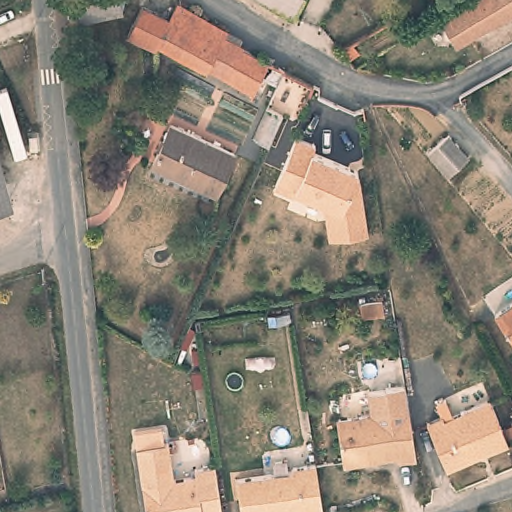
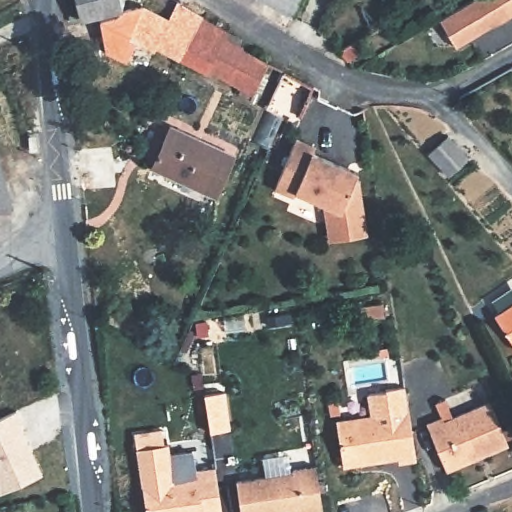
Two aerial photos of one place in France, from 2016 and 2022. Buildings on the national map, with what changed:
unchanged [(125,6),(84,18),(79,0),(123,0),(125,6)]
unchanged [(291,18),(271,5),(273,0),(302,0),(291,18)]
unchanged [(465,0),(512,0),(512,12),(492,23),(491,22),(453,44),(437,16),(465,0)]
unchanged [(171,16),(179,1),(228,29),(225,35),(249,49),(256,52),(268,59),(272,61),(255,93),(209,69),(207,71),(157,45),(171,16)]
unchanged [(171,16),(157,45),(156,48),(130,35),(146,3),(171,16)]
unchanged [(286,68),(315,83),(301,112),(272,100),(286,68)]
unchanged [(173,122),(234,154),(212,194),(152,162),(173,122)]
unchanged [(0,127),(0,124),(1,127),(0,127)]
unchanged [(449,132),(470,155),(450,173),(428,150),(449,132)]
unchanged [(323,207),(296,195),(293,200),(275,192),(296,141),(315,149),(312,156),(336,166),(357,176),(355,182),(358,184),(367,238),(340,242),(329,244),(323,207)]
unchanged [(0,209),(0,157),(14,206),(0,209)]
unchanged [(11,171),(17,182),(12,185),(11,171)]
unchanged [(493,311),(512,300),(512,340),(493,311)]
unchanged [(360,304),(382,301),(383,313),(362,316),(360,304)]
unchanged [(443,467),(425,420),(440,414),(442,418),(487,399),(506,442),(482,452),(460,461),(443,467)]
new [(21,415),(17,416),(41,471),(0,491),(0,415),(17,407),(21,415)]
unchanged [(338,473),(332,429),(361,425),(404,418),(407,436),(412,466),(394,469),(393,465),(367,469),(366,469),(356,470),(338,473)]
unchanged [(191,484),(190,477),(211,474),(216,512),(140,512),(132,455),(163,450),(169,488),(191,484)]
unchanged [(286,480),(289,476),(311,473),(312,478),(317,512),(235,512),(232,488),(286,480)]

